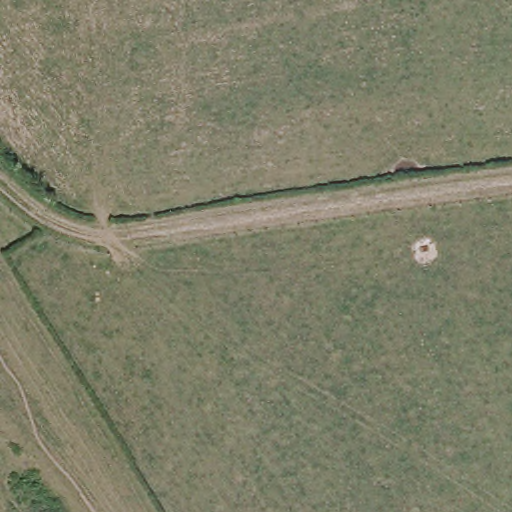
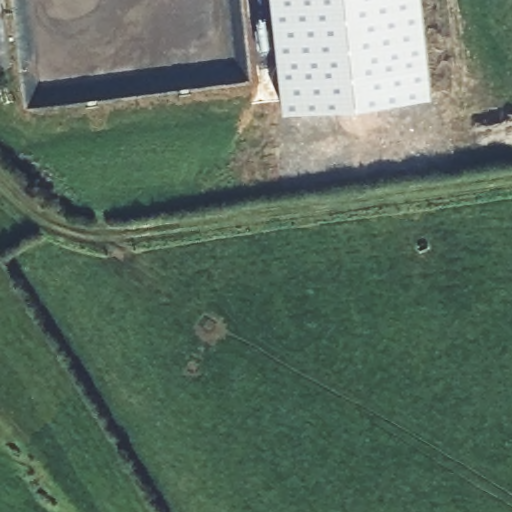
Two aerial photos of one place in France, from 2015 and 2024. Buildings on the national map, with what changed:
new [(271,0),(422,0),(432,94),(283,110),(271,0)]

